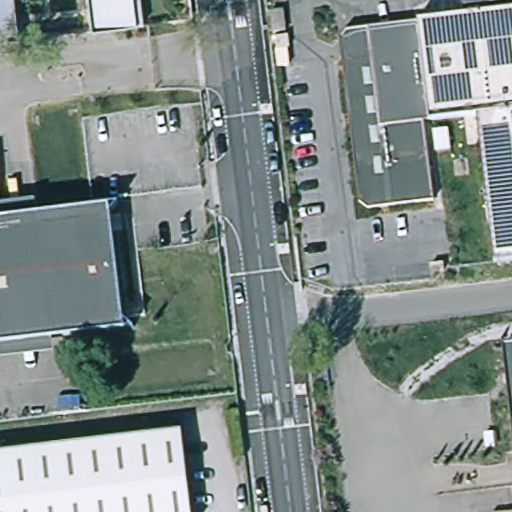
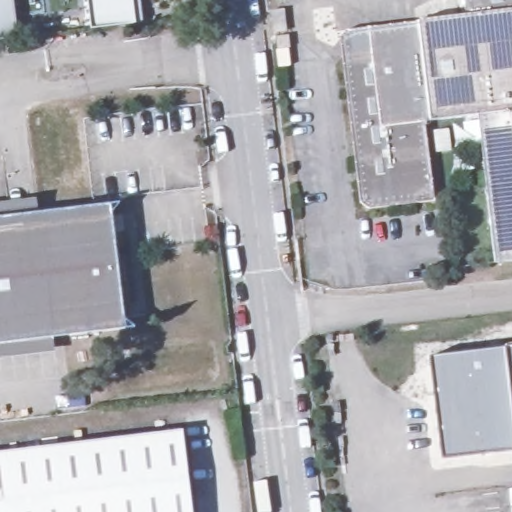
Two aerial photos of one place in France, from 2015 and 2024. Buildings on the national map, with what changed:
unchanged [(14,35),(0,36),(0,0),(11,0),(14,35)]
unchanged [(138,20),(88,26),(85,0),(135,0),(138,20)]
unchanged [(362,27),(461,15),(459,0),(512,0),(512,261),(492,263),(473,115),(424,120),(434,200),(367,209),(359,202),(341,55),(362,27)]
unchanged [(273,32),(270,13),(283,11),(285,31),(273,32)]
unchanged [(124,332),(0,347),(0,219),(109,206),(124,332)]
unchanged [(512,348),(512,441),(501,350),(512,348)]
new [(501,350),(512,442),(512,450),(443,457),(431,357),(501,350)]
unchanged [(189,512),(0,512),(0,453),(179,432),(189,512)]

